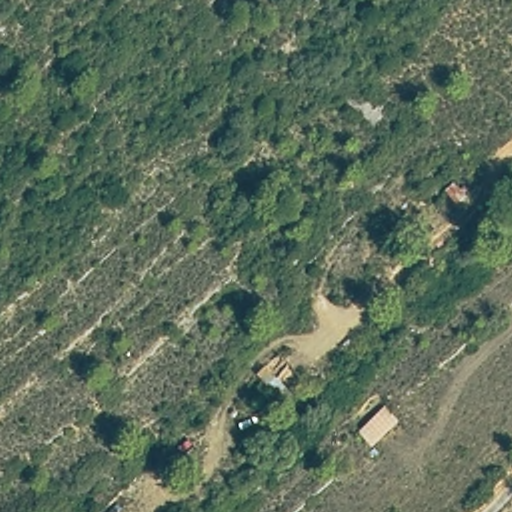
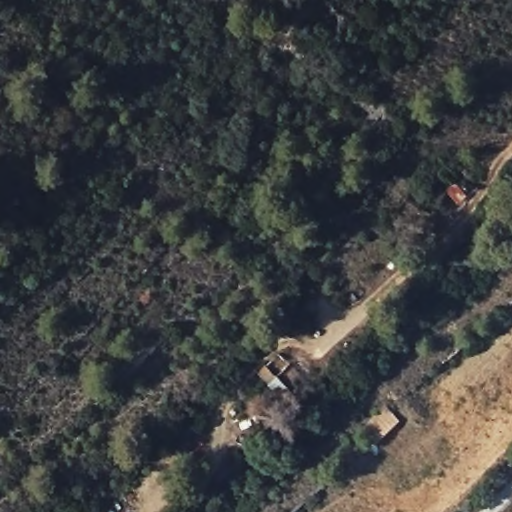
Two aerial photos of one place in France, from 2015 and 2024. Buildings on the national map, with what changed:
unchanged [(353,439),(383,413),(397,430),(369,457),(353,439)]

